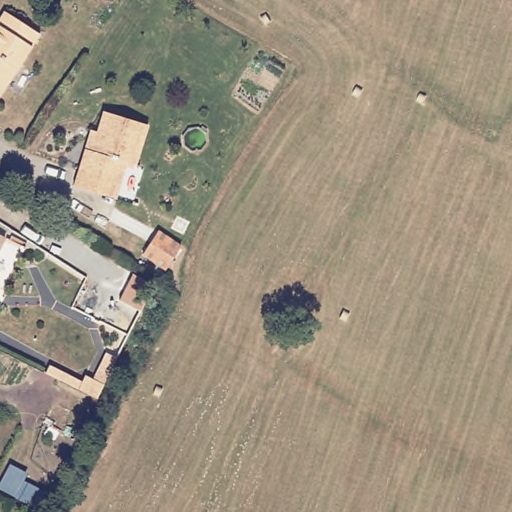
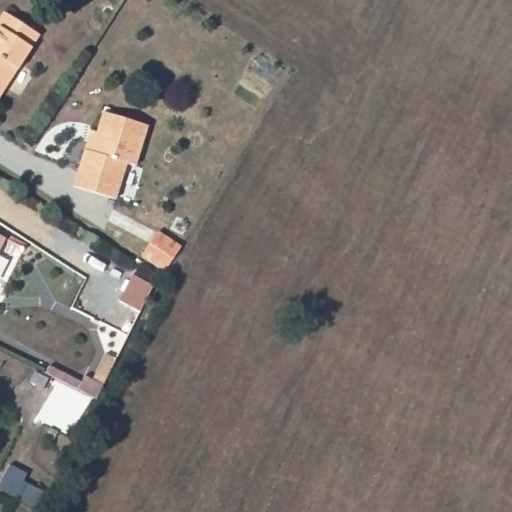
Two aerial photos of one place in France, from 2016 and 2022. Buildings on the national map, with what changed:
unchanged [(8,12),(40,33),(0,98),(0,25),(8,12)]
unchanged [(147,121),(135,164),(126,161),(116,196),(74,185),(86,142),(90,125),(99,127),(104,109),(147,121)]
unchanged [(178,245),(163,268),(159,266),(140,255),(155,230),(168,239),(178,245)]
unchanged [(5,240),(0,249),(0,237),(5,240)]
unchanged [(83,376),(102,385),(94,400),(77,390),(83,376)]
unchanged [(1,473),(40,495),(32,508),(0,491),(0,475),(1,473)]

